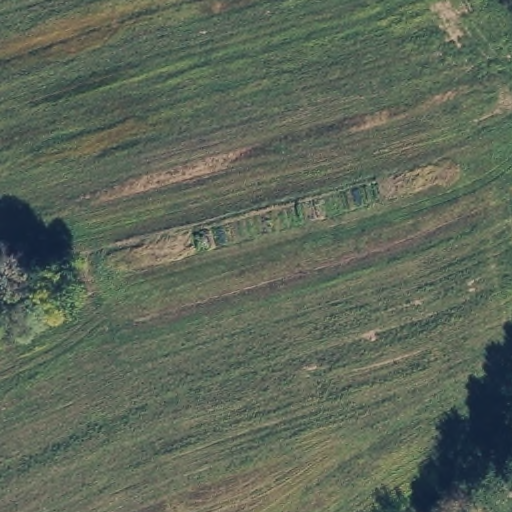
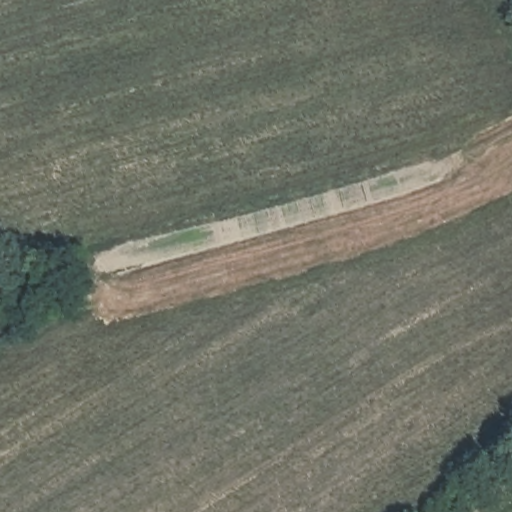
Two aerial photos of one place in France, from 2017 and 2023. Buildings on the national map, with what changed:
[]

